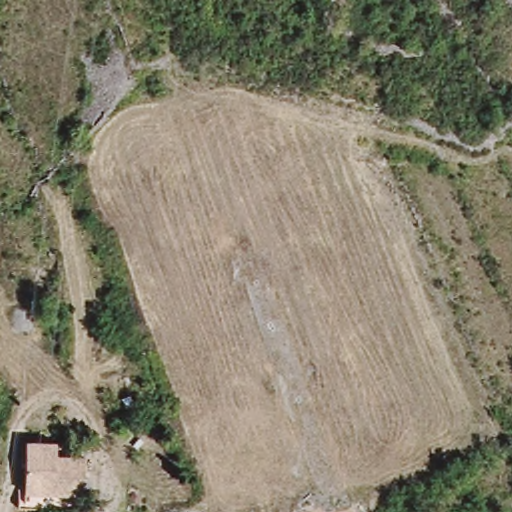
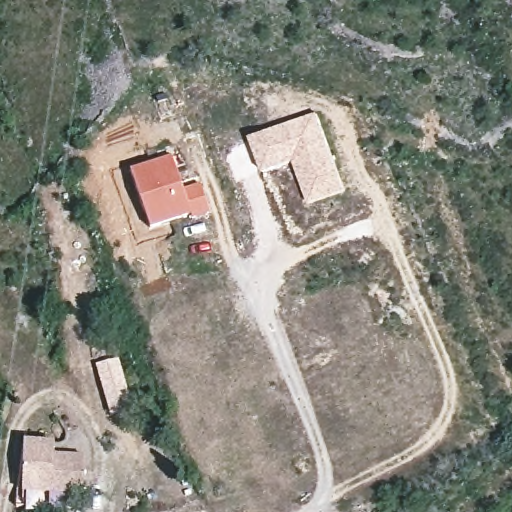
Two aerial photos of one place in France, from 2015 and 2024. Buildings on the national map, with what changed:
new [(317,112),(345,191),(308,204),(293,163),(263,172),(250,137),(317,112)]
new [(171,154),(183,187),(201,181),(212,210),(193,216),(191,211),(149,227),(127,170),(171,154)]
new [(119,359),(132,406),(112,411),(99,364),(119,359)]
unchanged [(25,441),(53,442),(53,456),(81,457),(82,490),(60,491),(60,498),(59,497),(20,491),(25,441)]

